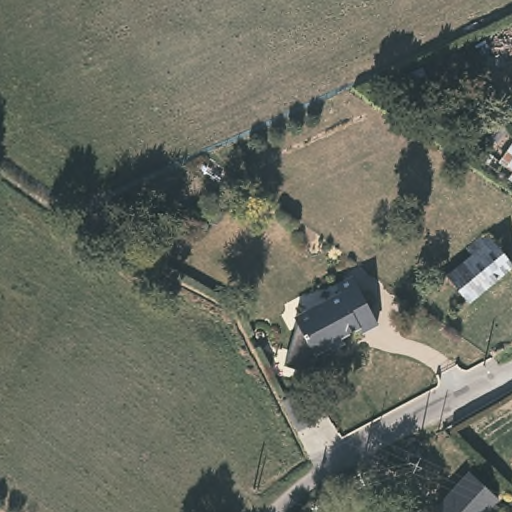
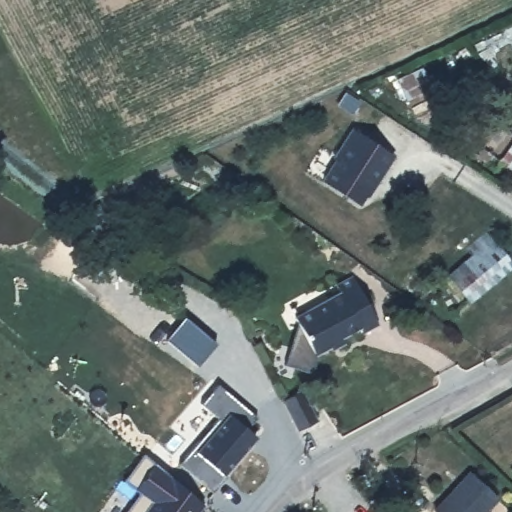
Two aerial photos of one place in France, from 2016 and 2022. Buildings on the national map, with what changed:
unchanged [(492,146),(473,128),(491,112),(512,128),(492,146)]
new [(336,159),(334,158),(352,129),(396,155),(370,197),(366,196),(360,205),(322,182),(336,159)]
unchanged [(512,172),(512,184),(506,180),(512,172)]
unchanged [(511,262),(468,297),(446,272),(471,252),(464,243),(484,228),(511,262)]
unchanged [(286,355),(281,351),(282,349),(294,332),(299,325),(295,317),(343,295),(339,283),(358,274),(378,322),(361,329),(359,325),(342,333),(345,342),(330,348),(328,344),(317,349),(304,367),(286,355)]
new [(216,420),(198,406),(215,385),(255,417),(245,429),(254,437),(223,475),(226,477),(213,493),(178,466),(216,420)]
unchanged [(303,391),(318,421),(299,430),(295,421),(285,400),(303,391)]
new [(203,505),(199,512),(129,512),(139,496),(123,485),(142,456),(203,505)]
unchanged [(495,500),(484,512),(438,512),(437,511),(470,475),(495,500)]

